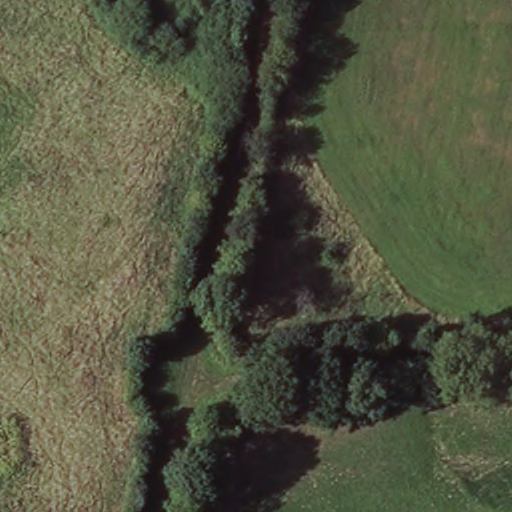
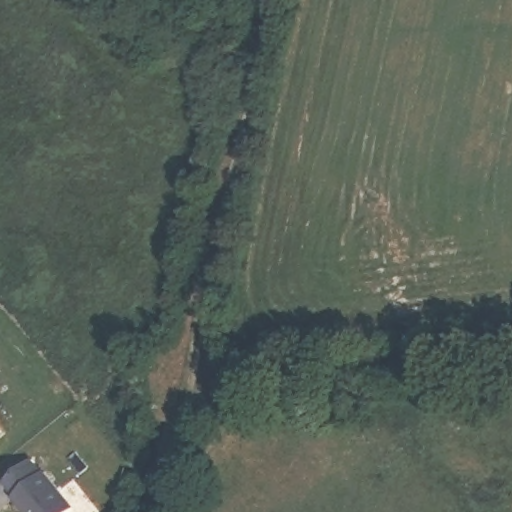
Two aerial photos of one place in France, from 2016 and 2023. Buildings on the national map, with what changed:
new [(1,421),(0,422),(0,420),(1,421)]
new [(76,502),(65,512),(31,512),(4,479),(33,455),(76,502)]

